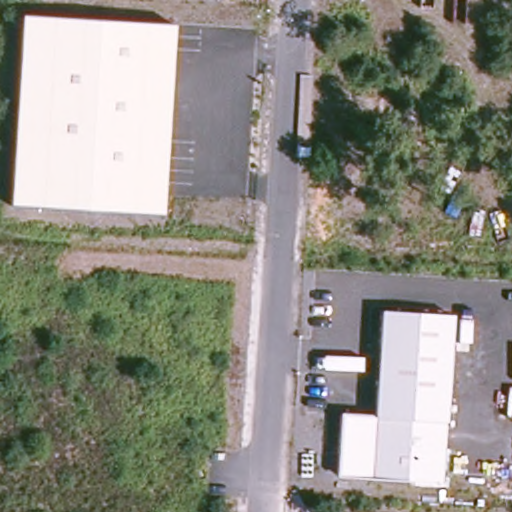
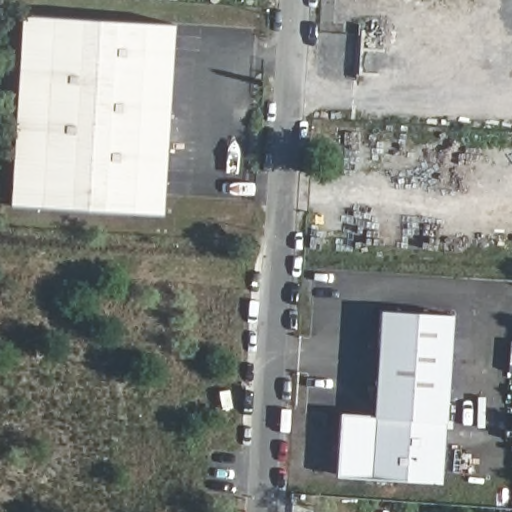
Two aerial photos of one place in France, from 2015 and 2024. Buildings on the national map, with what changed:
unchanged [(8,206),(18,14),(168,22),(158,214),(8,206)]
unchanged [(335,475),(339,412),(373,414),(381,309),(452,314),(444,419),(441,483),(335,475)]

